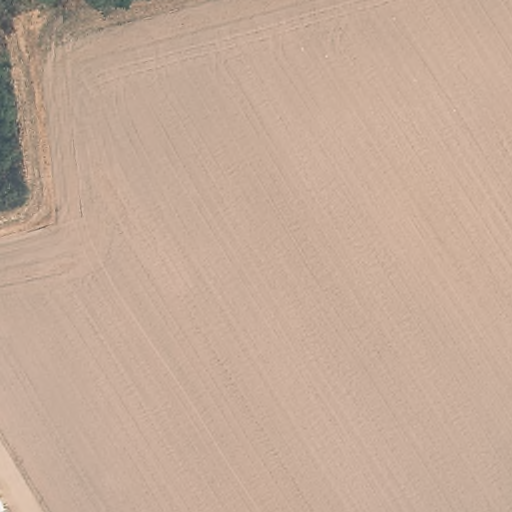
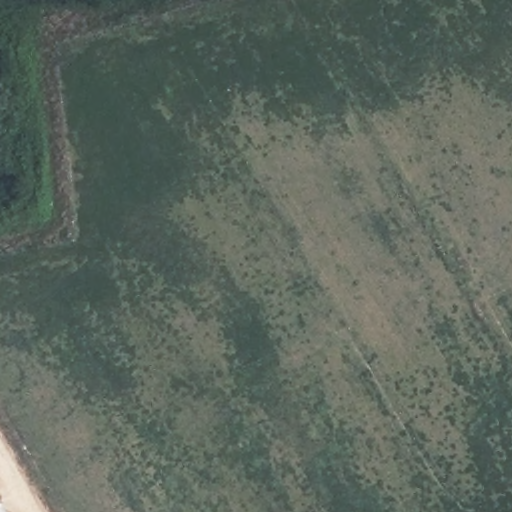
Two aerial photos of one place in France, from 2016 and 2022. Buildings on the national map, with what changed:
unchanged [(0,512),(0,501),(7,512),(0,512)]

